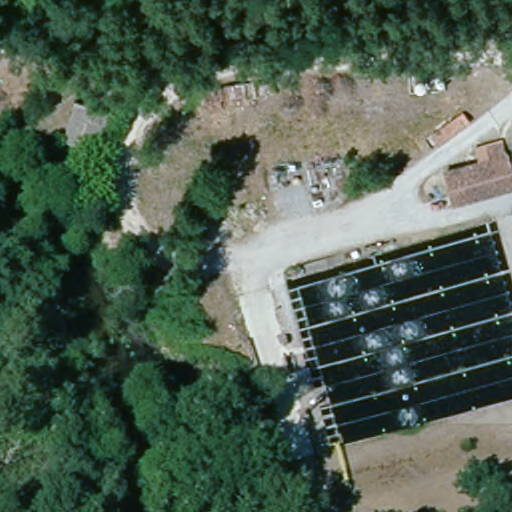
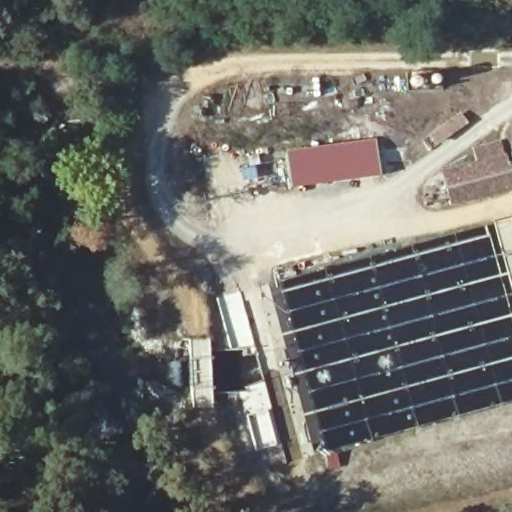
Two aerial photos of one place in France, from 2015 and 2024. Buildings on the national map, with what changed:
unchanged [(111,107),(99,160),(60,152),(74,97),(111,107)]
new [(460,112),(468,122),(435,147),(426,136),(460,112)]
new [(375,138),(381,176),(292,188),(286,151),(375,138)]
unchanged [(447,201),(441,177),(482,164),(478,147),(505,139),(512,168),(512,180),(447,201)]

